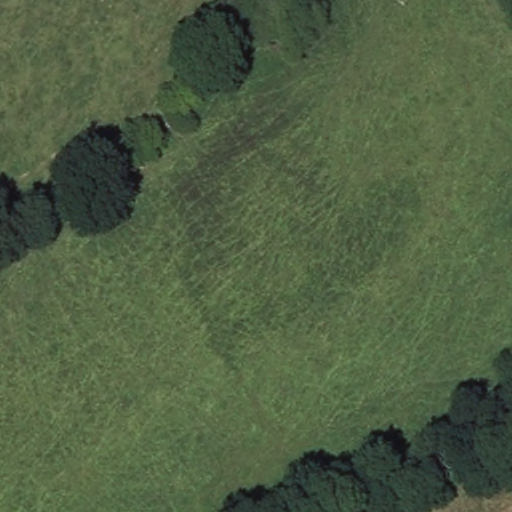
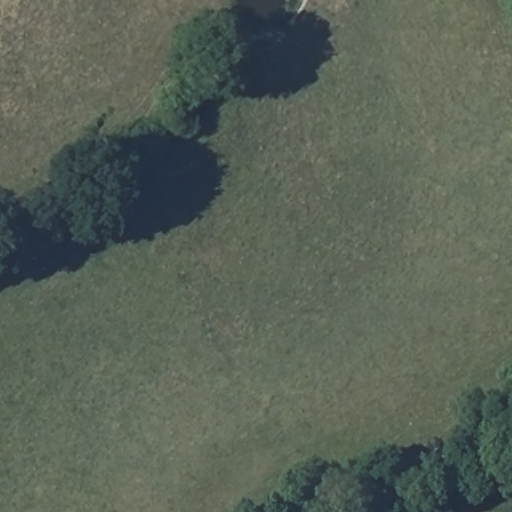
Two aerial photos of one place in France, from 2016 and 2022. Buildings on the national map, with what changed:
[]

